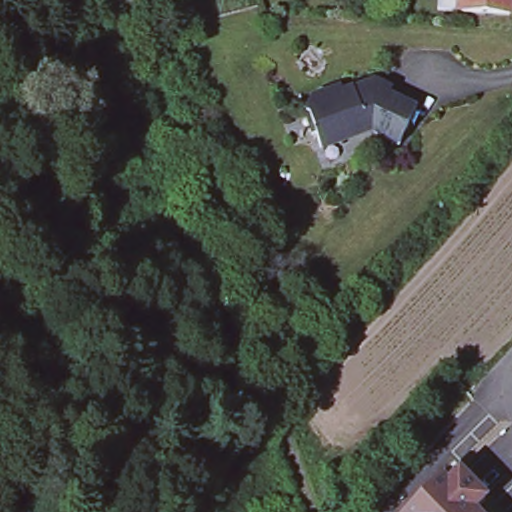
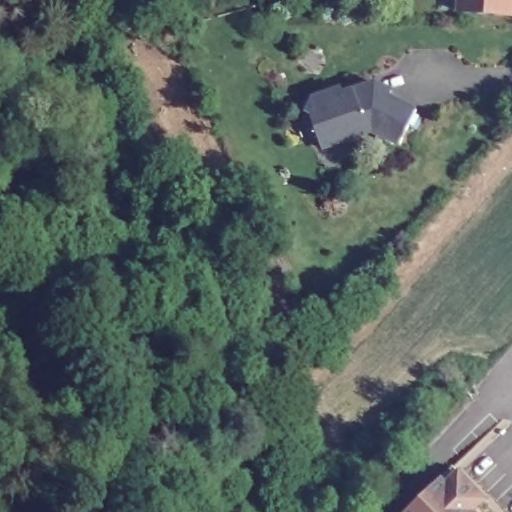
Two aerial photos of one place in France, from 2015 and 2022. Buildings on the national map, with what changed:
unchanged [(508,14),(508,15),(457,13),(458,10),(463,10),(463,0),(506,0),(506,14),(508,14)]
unchanged [(341,89),(343,94),(375,83),(378,93),(380,93),(417,110),(399,144),(371,131),(321,149),(309,114),(306,113),(314,98),(341,89)]
unchanged [(89,461),(90,479),(65,479),(65,461),(89,461)]
unchanged [(418,497),(439,476),(452,464),(458,469),(484,497),(468,512),(402,512),(418,497)]

